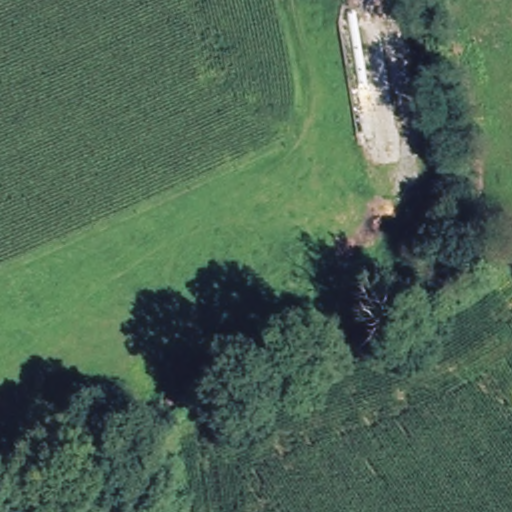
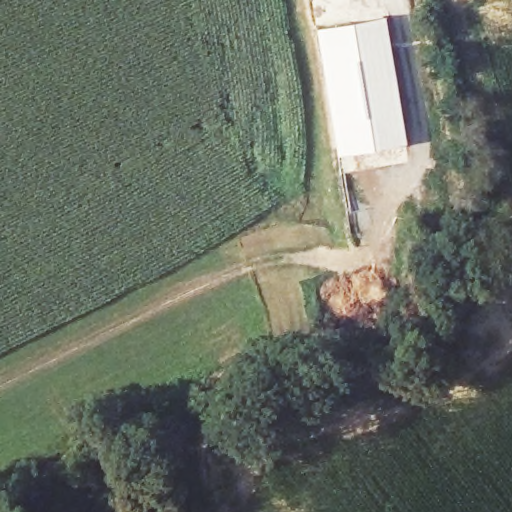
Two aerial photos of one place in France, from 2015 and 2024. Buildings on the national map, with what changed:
new [(384,17),(405,143),(336,153),(314,27),(384,17)]
new [(248,202),(335,168),(348,202),(334,208),(331,200),(257,226),(248,202)]

